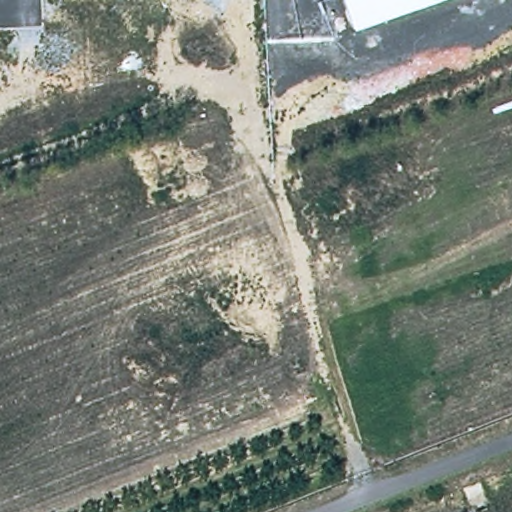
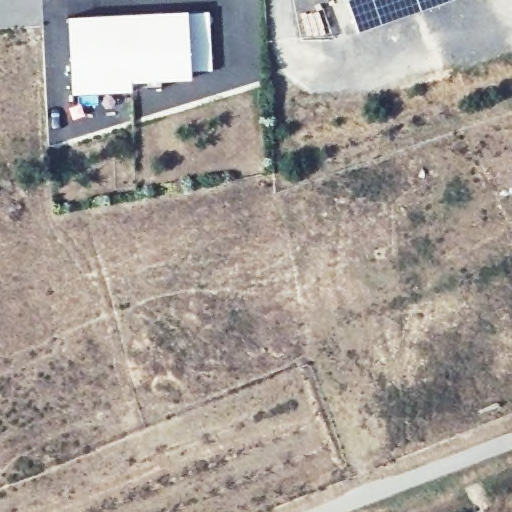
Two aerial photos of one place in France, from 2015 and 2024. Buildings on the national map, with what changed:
unchanged [(345,0),(453,0),(356,34),(345,0)]
new [(162,81),(160,88),(131,91),(71,95),(66,16),(187,10),(187,14),(208,11),(210,70),(189,71),(190,79),(162,81)]

